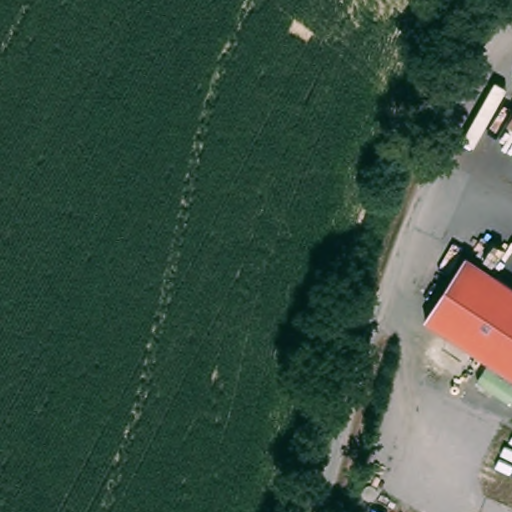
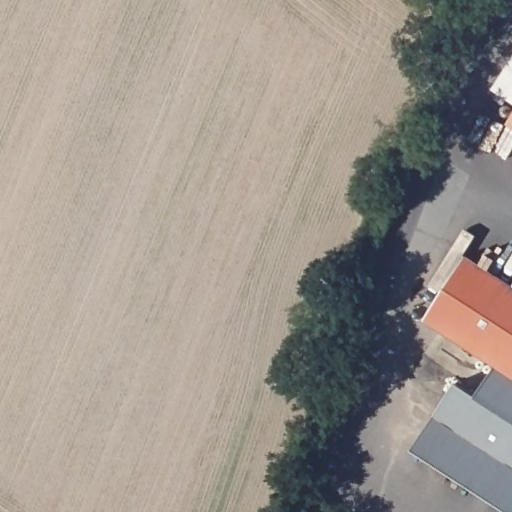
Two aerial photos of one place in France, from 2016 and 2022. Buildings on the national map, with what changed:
unchanged [(426,320),(467,253),(512,281),(512,372),(488,357),(444,331),(426,320)]
new [(415,449),(456,382),(477,395),(496,362),(512,372),(512,511),(415,449)]

